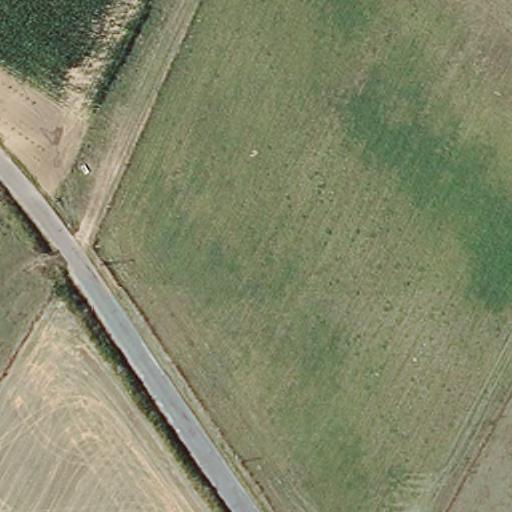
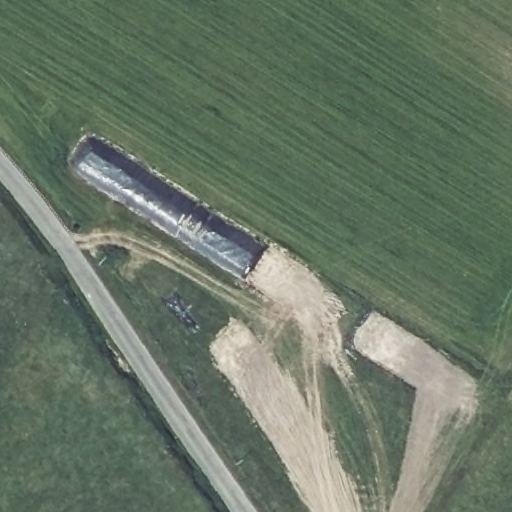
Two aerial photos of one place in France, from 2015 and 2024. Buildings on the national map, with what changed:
[]

